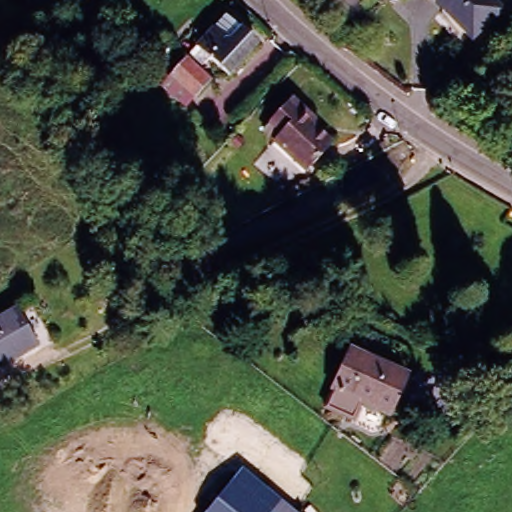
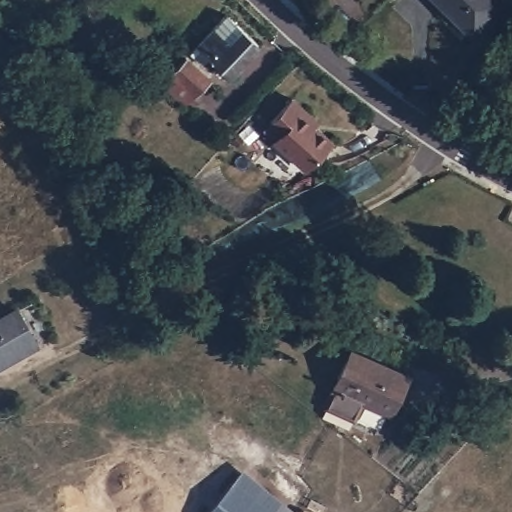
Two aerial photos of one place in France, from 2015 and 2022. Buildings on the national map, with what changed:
unchanged [(474,31),(442,0),(504,0),(505,1),(474,31)]
unchanged [(190,50),(227,11),(259,40),(229,71),(210,55),(203,61),(190,50)]
unchanged [(183,103),(160,81),(186,54),(209,75),(183,103)]
unchanged [(288,89),(300,100),(312,111),(307,117),(327,136),(302,161),(270,131),(260,122),(267,114),(265,112),(288,89)]
unchanged [(37,336),(0,358),(0,310),(17,300),(37,336)]
unchanged [(350,410),(328,399),(327,397),(327,396),(334,383),(350,343),(408,369),(391,409),(366,397),(359,413),(350,410)]
unchanged [(242,468),(295,512),(208,512),(242,468)]

